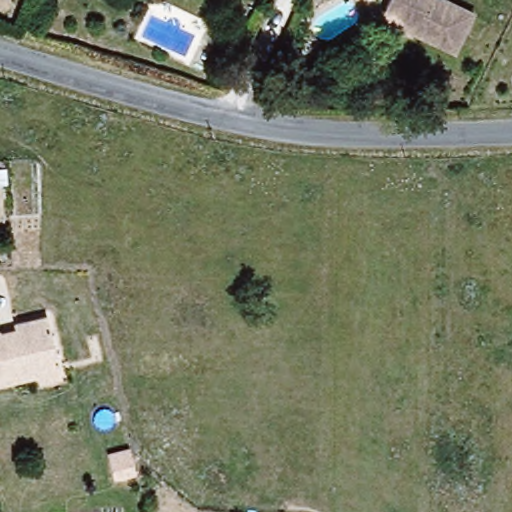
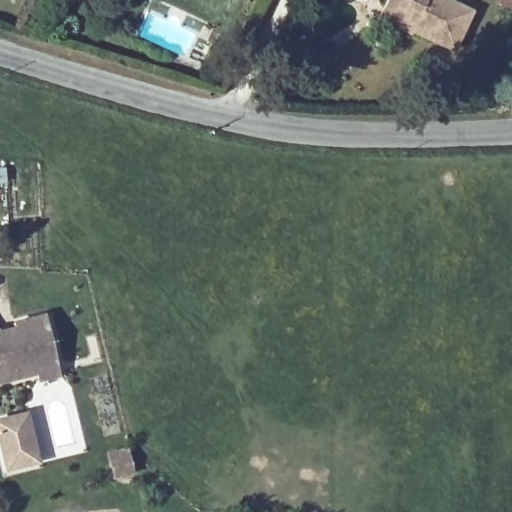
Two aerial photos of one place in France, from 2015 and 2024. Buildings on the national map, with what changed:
unchanged [(382,21),(387,9),(392,0),(444,0),(471,15),(455,51),(413,32),(412,34),(382,21)]
unchanged [(37,378),(36,371),(0,380),(0,331),(5,334),(15,331),(12,321),(45,313),(55,356),(60,372),(37,378)]
new [(42,467),(6,475),(0,448),(0,420),(29,413),(42,467)]

